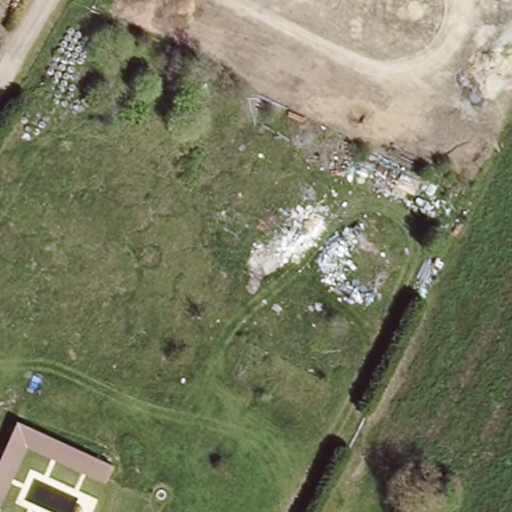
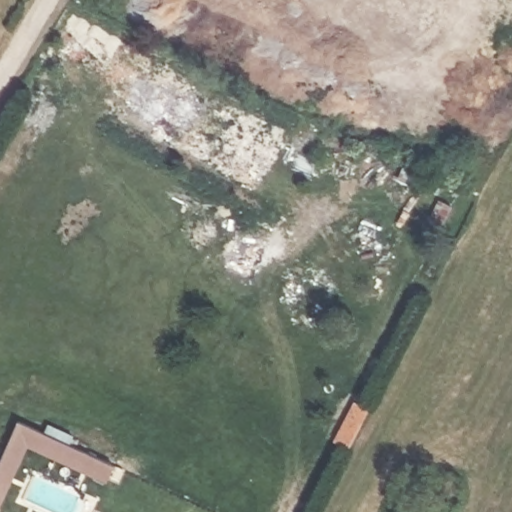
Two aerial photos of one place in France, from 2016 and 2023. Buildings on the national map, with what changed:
unchanged [(27,446),(0,507),(0,460),(18,420),(113,464),(105,484),(27,446)]

